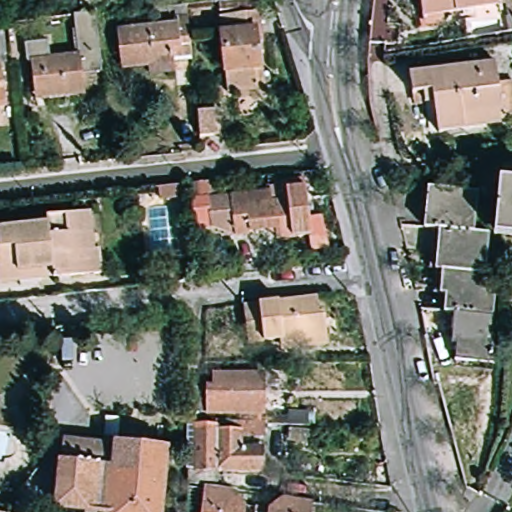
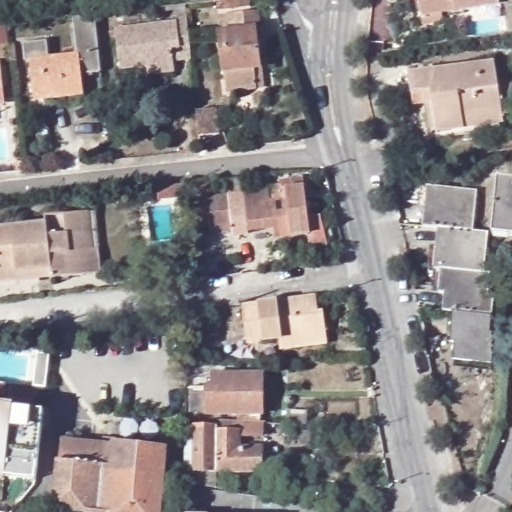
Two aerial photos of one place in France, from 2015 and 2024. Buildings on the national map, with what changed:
unchanged [(185,39),(175,40),(176,44),(168,45),(169,67),(143,70),(143,61),(115,64),(112,26),(173,19),(170,0),(176,0),(181,0),(185,39)]
unchanged [(503,5),(427,18),(424,0),(502,0),(503,5)]
unchanged [(28,95),(28,79),(25,57),(20,58),(18,40),(41,36),(43,54),(69,51),(64,14),(90,10),(97,70),(76,72),(78,91),(37,95),(28,95)]
unchanged [(225,36),(223,27),(254,24),(255,33),(225,36)]
unchanged [(228,97),(224,59),(228,58),(226,44),(264,39),(266,55),(262,55),(266,92),(228,97)]
unchanged [(411,105),(408,86),(494,72),(498,95),(512,94),(512,124),(503,126),(503,133),(437,144),(432,111),(413,115),(411,105)]
new [(18,163),(23,162),(23,172),(18,173),(18,163)]
unchanged [(274,188),(287,187),(286,181),(298,180),(309,179),(316,235),(281,240),(279,231),(239,236),(238,225),(216,227),(214,200),(274,193),(274,188)]
unchanged [(188,185),(189,197),(159,200),(158,189),(188,185)]
unchanged [(494,235),(499,186),(512,187),(512,237),(494,235)]
unchanged [(423,234),(425,194),(477,198),(472,239),(438,235),(423,234)]
unchanged [(0,225),(51,220),(51,213),(87,209),(93,209),(97,246),(103,245),(105,270),(57,275),(1,280),(0,280),(0,225)]
unchanged [(472,239),(488,240),(484,280),(441,276),(434,275),(438,235),(472,239)]
unchanged [(484,280),(489,280),(487,302),(494,304),(492,322),(453,318),(442,317),(444,300),(439,300),(441,276),(484,280)]
unchanged [(284,350),(283,340),(248,343),(244,307),(318,297),(319,312),(324,311),(326,335),(328,345),(284,350)]
unchanged [(492,322),(491,338),(494,340),(492,370),(454,366),(455,349),(449,348),(453,318),(492,322)]
unchanged [(56,353),(57,332),(79,333),(78,354),(56,353)]
unchanged [(239,420),(239,414),(191,413),(191,389),(213,388),(213,375),(261,375),(261,421),(239,420)]
new [(14,408),(44,411),(35,481),(6,478),(5,480),(0,480),(0,404),(14,405),(14,408)]
unchanged [(184,485),(184,469),(184,426),(216,427),(216,422),(239,423),(238,448),(261,448),(260,472),(213,472),(213,490),(184,485)]
unchanged [(63,443),(103,446),(103,440),(113,440),(113,443),(168,450),(162,512),(68,512),(55,510),(63,443)]
demolished [(268,508),(276,499),(322,505),(321,512),(253,512),(253,506),(268,508)]
demolished [(387,512),(388,510),(402,510),(402,512),(387,512)]

